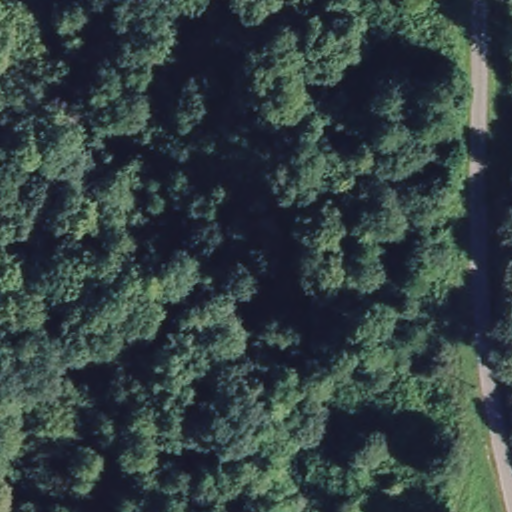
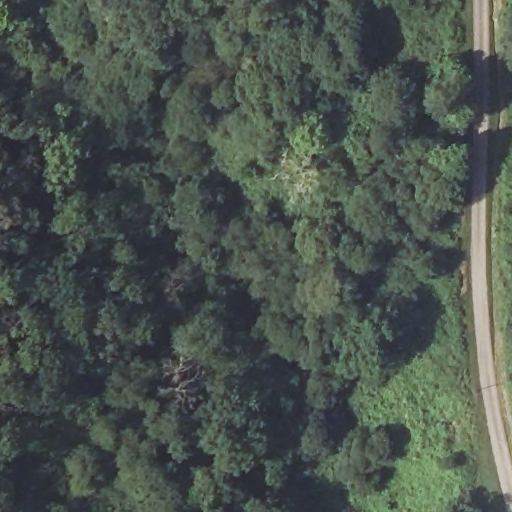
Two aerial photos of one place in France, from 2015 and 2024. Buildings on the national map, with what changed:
[]

